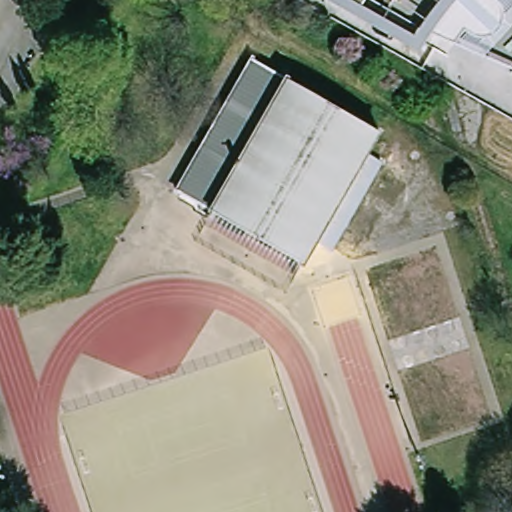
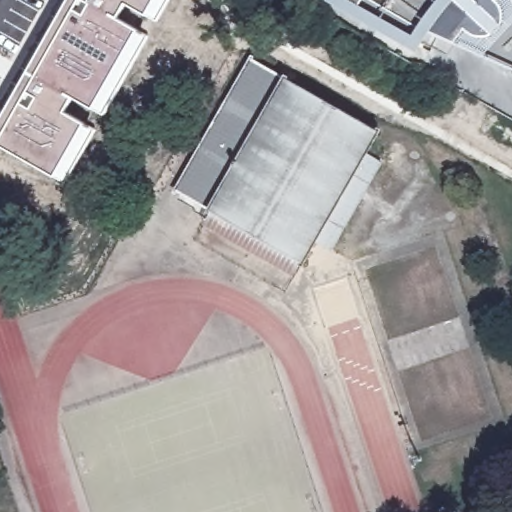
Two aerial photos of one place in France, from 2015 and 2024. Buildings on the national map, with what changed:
new [(68,0),(169,0),(157,21),(146,15),(126,3),(117,17),(139,29),(150,36),(104,116),(92,109),(72,98),(65,111),(85,122),(99,129),(66,184),(55,177),(0,146),(0,121),(68,0)]
unchanged [(502,11),(502,21),(500,27),(493,34),(488,35),(478,36),(470,32),(465,28),(455,42),(448,55),(350,0),(496,0),(498,2),(502,11)]
unchanged [(252,57),(377,131),(363,155),(312,244),(301,264),(175,192),(252,57)]
unchanged [(363,155),(382,165),(330,254),(312,244),(363,155)]

